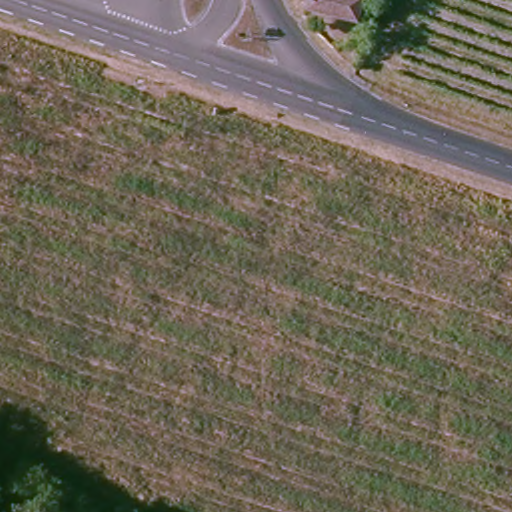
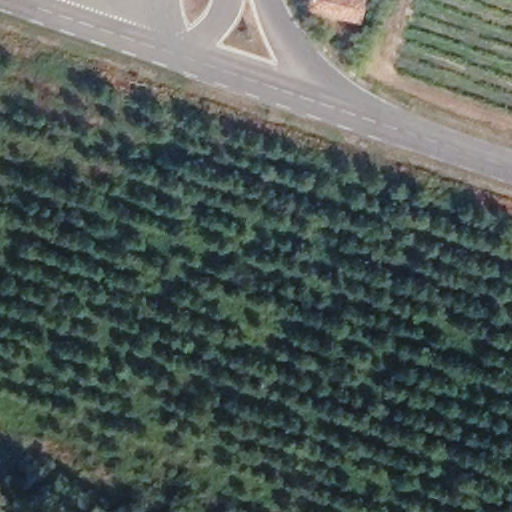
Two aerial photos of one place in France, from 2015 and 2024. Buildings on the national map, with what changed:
unchanged [(354,19),(306,5),(308,0),(360,0),(354,19)]

